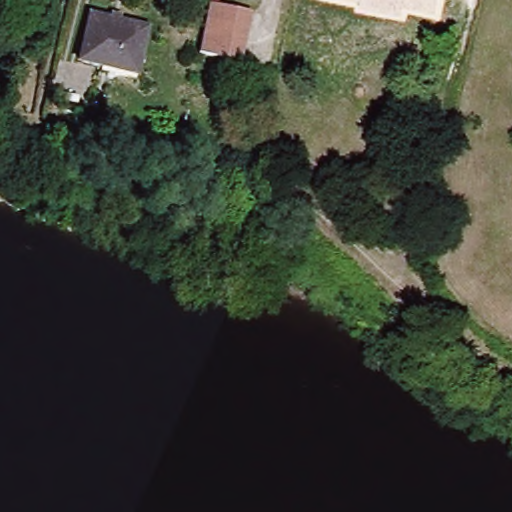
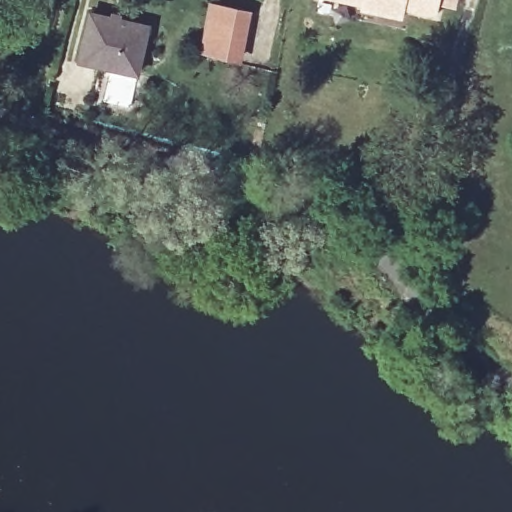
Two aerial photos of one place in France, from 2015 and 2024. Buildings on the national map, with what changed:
unchanged [(437,16),(406,10),(403,21),(361,12),(362,5),(333,0),(440,0),(437,16)]
unchanged [(203,54),(203,52),(210,20),(214,3),(251,9),(247,27),(240,61),(203,54)]
unchanged [(147,26),(136,75),(79,61),(90,13),(147,26)]

